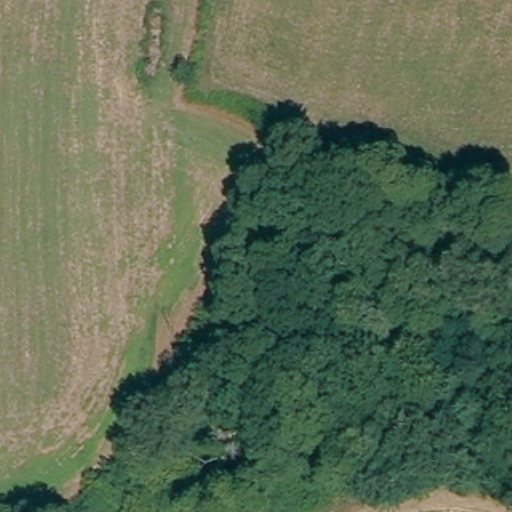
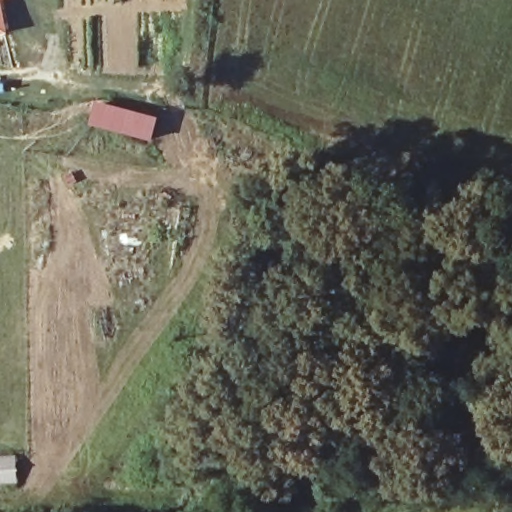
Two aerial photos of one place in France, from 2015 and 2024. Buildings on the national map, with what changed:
new [(0,36),(0,0),(3,0),(10,34),(0,36)]
new [(91,127),(96,102),(160,117),(154,142),(91,127)]
new [(19,483),(0,484),(0,458),(16,457),(19,483)]

